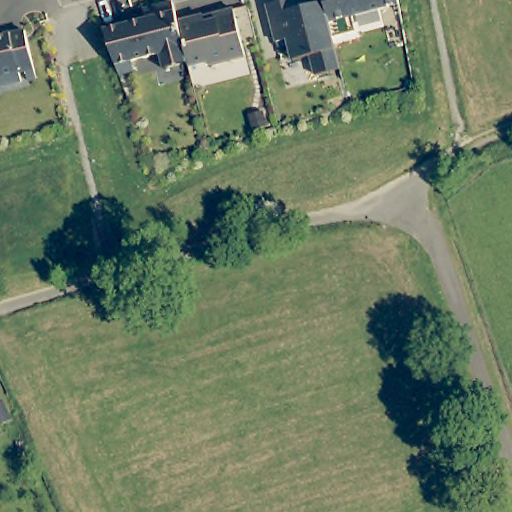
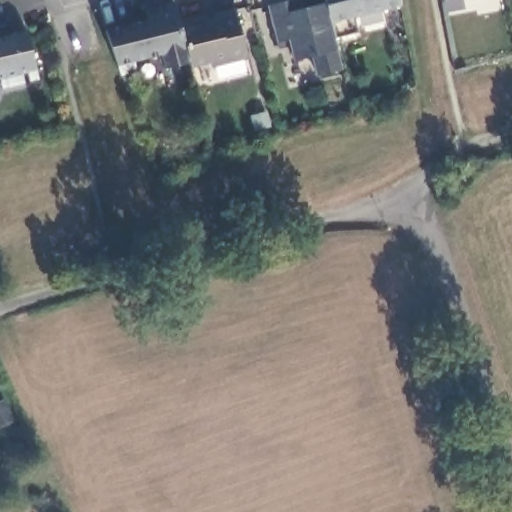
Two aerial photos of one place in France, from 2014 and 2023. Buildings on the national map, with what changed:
unchanged [(334,38),(341,63),(342,69),(317,75),(312,56),(294,60),(289,39),(277,42),(268,5),(288,0),(290,0),(293,11),(326,3),(328,15),(334,38)]
unchanged [(358,32),(334,38),(328,15),(326,3),(325,0),(400,0),(401,4),(354,16),(358,32)]
unchanged [(147,19),(145,9),(174,2),(179,21),(186,49),(187,53),(190,63),(165,69),(162,54),(134,61),(136,71),(121,75),(120,74),(105,30),(147,19)]
unchanged [(204,15),(206,22),(217,20),(216,14),(235,9),(247,57),(211,66),(210,61),(191,66),(190,63),(187,53),(186,49),(179,21),(204,15)]
unchanged [(38,79),(2,87),(0,78),(0,38),(27,31),(38,79)]

